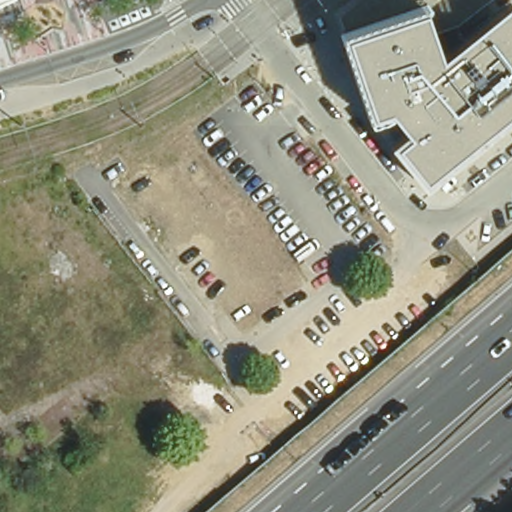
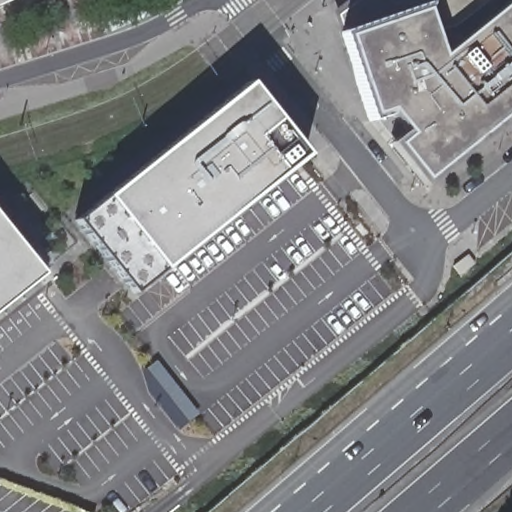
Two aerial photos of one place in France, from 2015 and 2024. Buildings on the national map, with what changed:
unchanged [(15,0),(0,6),(0,0),(15,0)]
unchanged [(511,0),(512,1),(512,115),(426,187),(391,144),(405,131),(391,114),(369,122),(335,12),(350,0),(511,0)]
new [(130,294),(73,222),(246,84),(302,155),(130,294)]
new [(0,305),(0,225),(39,272),(0,305)]
new [(150,390),(144,370),(157,361),(200,415),(181,430),(150,390)]

